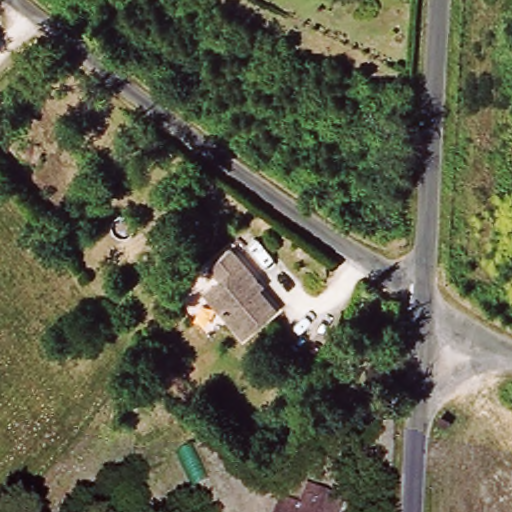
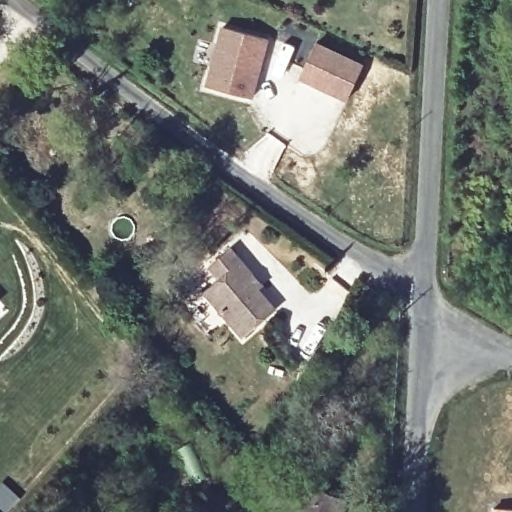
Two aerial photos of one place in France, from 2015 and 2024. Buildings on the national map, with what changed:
new [(221,28),(266,40),(249,100),(204,86),(221,28)]
new [(313,46),(361,69),(346,102),(298,81),(313,46)]
unchanged [(264,290),(259,294),(276,310),(242,339),(205,294),(219,279),(210,267),(230,251),(264,290)]
unchanged [(210,483),(185,495),(163,448),(190,436),(210,483)]
unchanged [(302,508),(306,496),(341,511),(341,512),(278,512),(282,501),(302,508)]
new [(512,508),(512,512),(489,512),(489,507),(512,508)]

